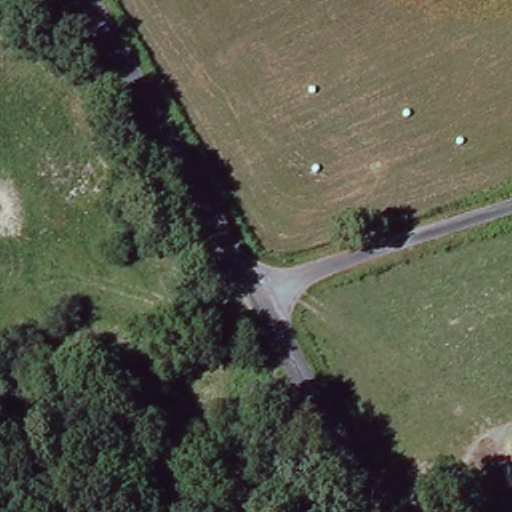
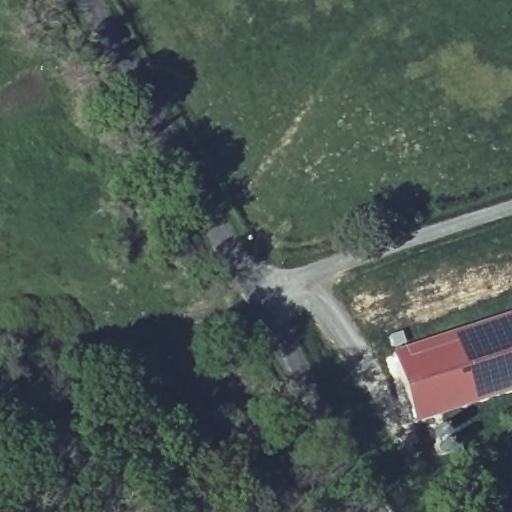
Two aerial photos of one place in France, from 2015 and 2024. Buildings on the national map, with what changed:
new [(392,350),(512,312),(512,392),(416,423),(392,350)]

